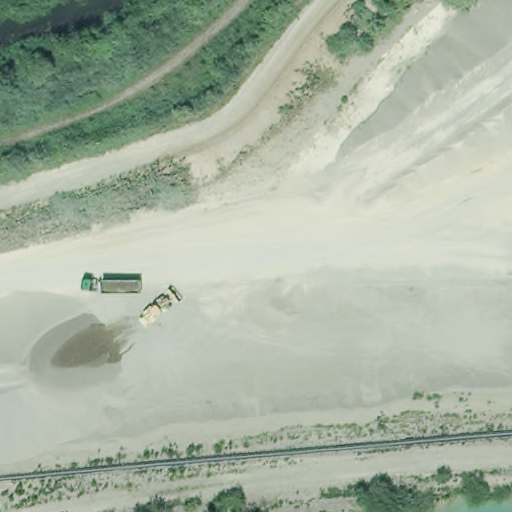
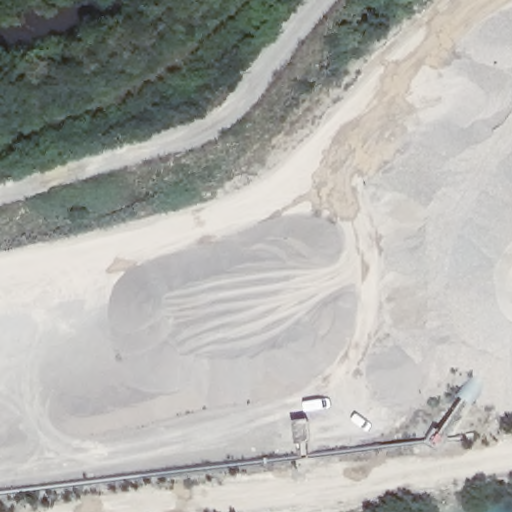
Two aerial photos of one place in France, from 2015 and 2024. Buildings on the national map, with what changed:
[]

